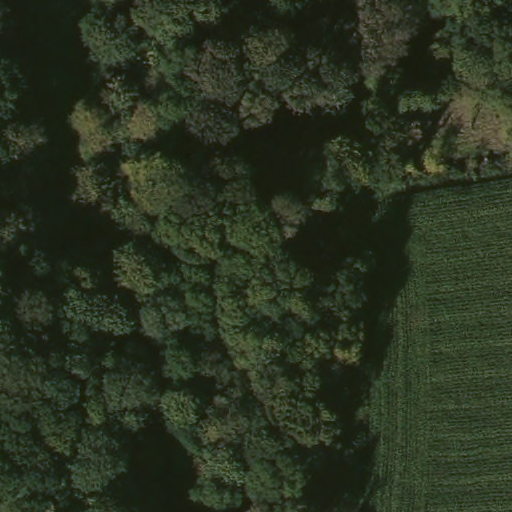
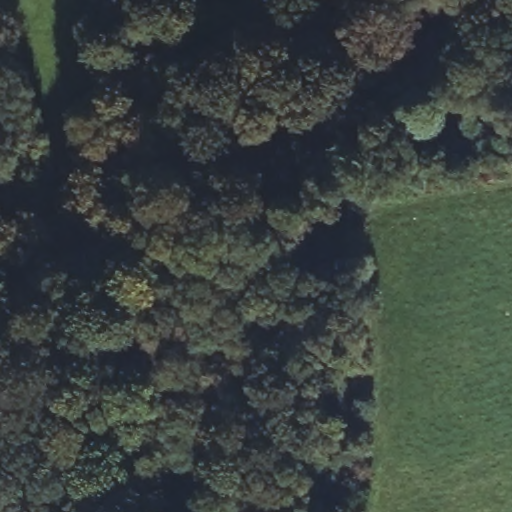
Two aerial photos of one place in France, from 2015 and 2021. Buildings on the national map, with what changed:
[]

